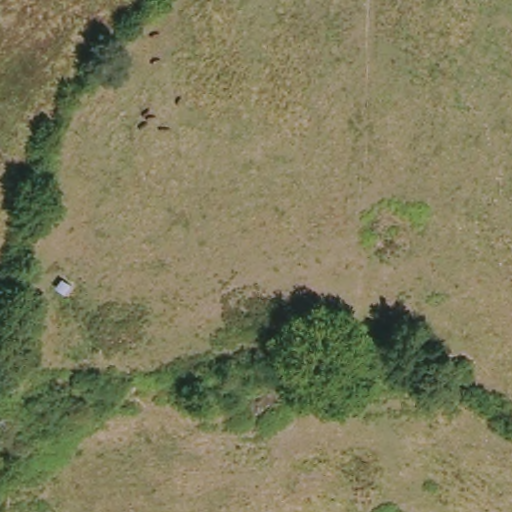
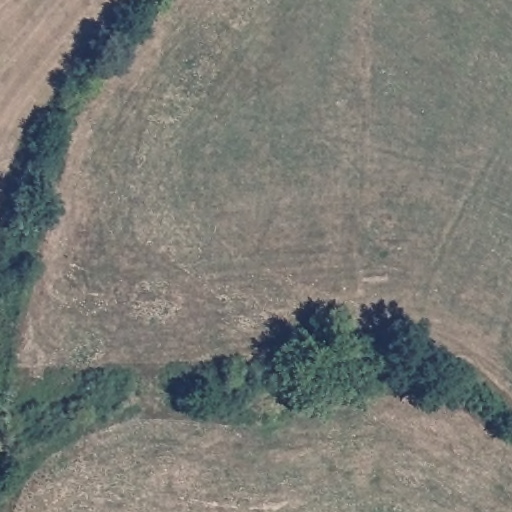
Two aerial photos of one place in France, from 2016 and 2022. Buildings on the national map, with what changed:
[]

